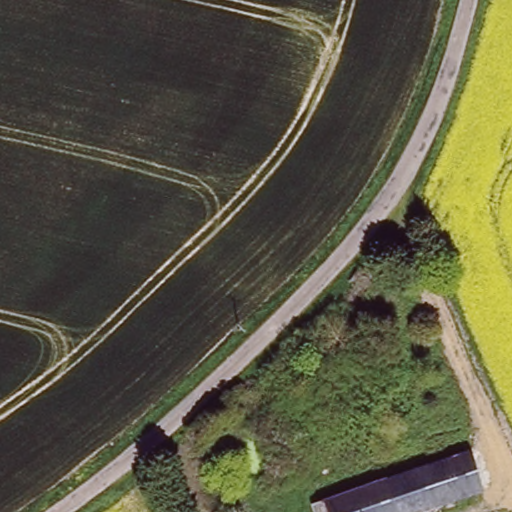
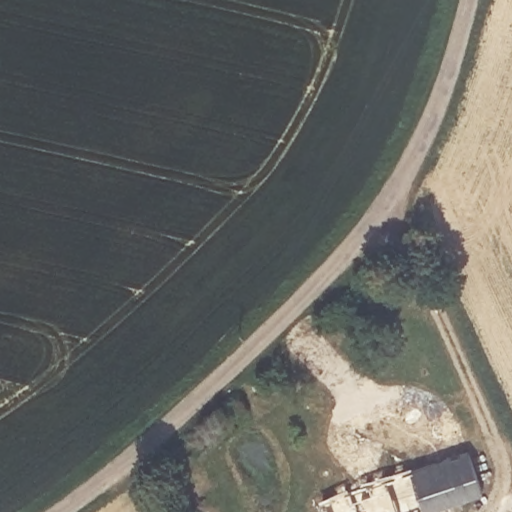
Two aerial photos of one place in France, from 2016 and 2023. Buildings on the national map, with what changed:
unchanged [(462,449),(462,452),(474,485),(475,491),(414,512),(310,512),(307,503),(462,449)]

